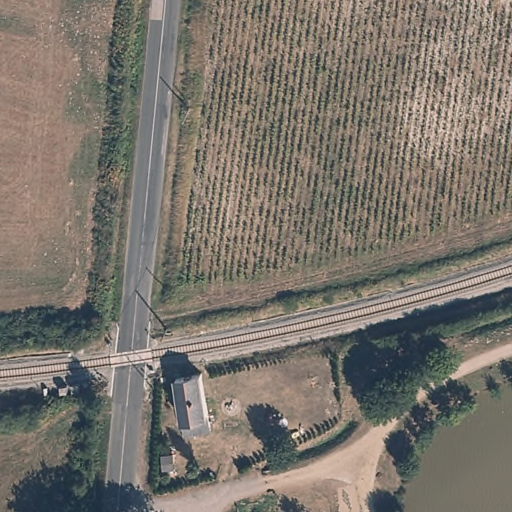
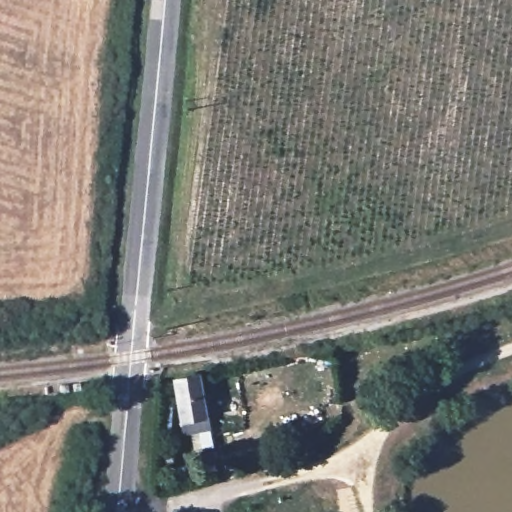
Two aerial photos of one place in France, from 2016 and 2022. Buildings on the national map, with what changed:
unchanged [(177,382),(188,380),(188,377),(189,375),(190,373),(193,372),(195,372),(197,373),(200,375),(200,378),(201,377),(211,431),(186,436),(177,382)]
unchanged [(163,470),(177,466),(187,464),(194,479),(164,489),(163,470)]

